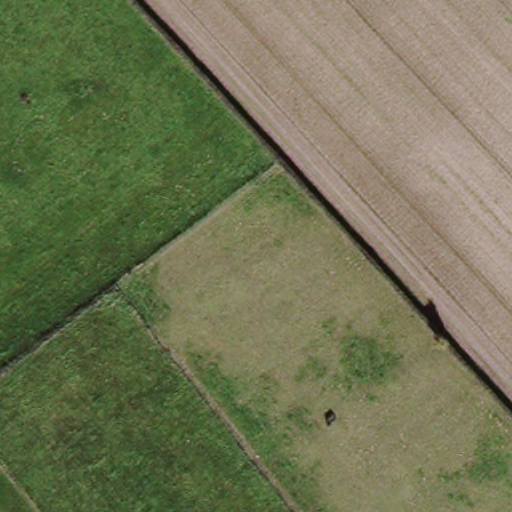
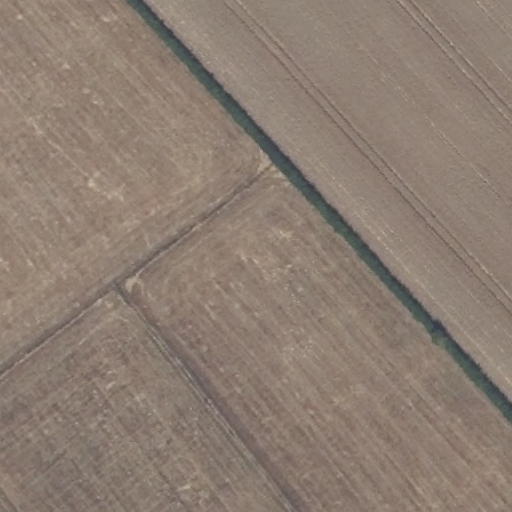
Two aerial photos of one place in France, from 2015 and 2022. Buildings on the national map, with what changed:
[]

